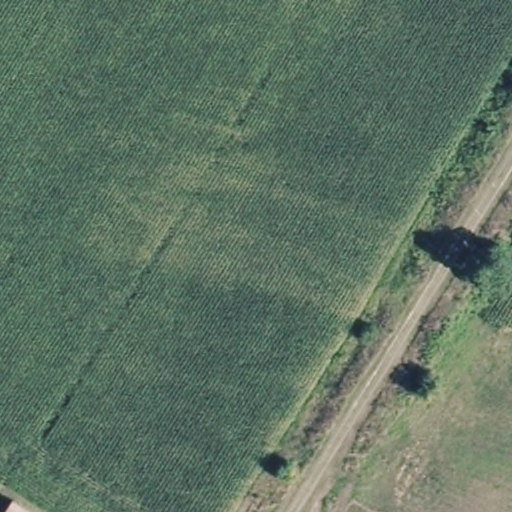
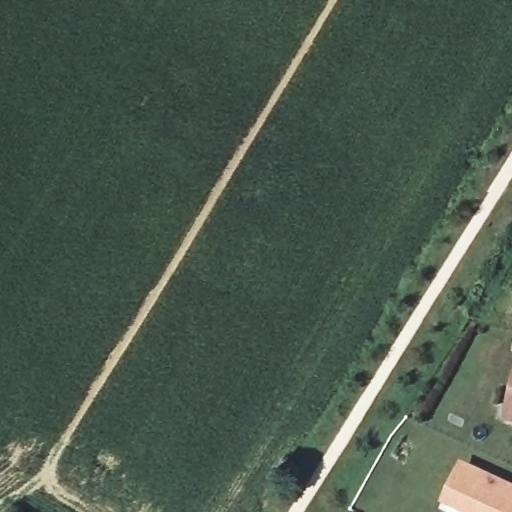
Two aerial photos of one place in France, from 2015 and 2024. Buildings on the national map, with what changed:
new [(502,422),(512,381),(512,425),(502,422)]
new [(454,512),(440,506),(460,463),(512,488),(512,512),(454,512)]
unchanged [(11,512),(7,512),(8,510),(11,512)]

